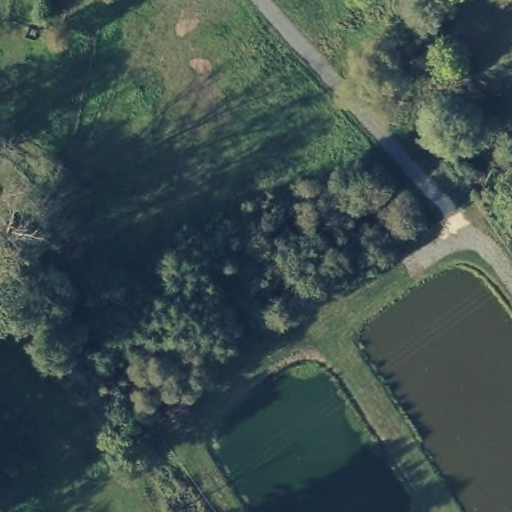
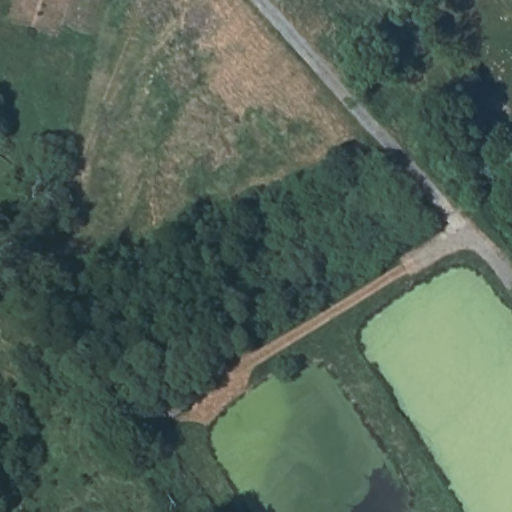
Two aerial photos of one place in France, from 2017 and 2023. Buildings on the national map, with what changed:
unchanged [(194,410),(172,421),(165,403),(182,395),(194,410)]

